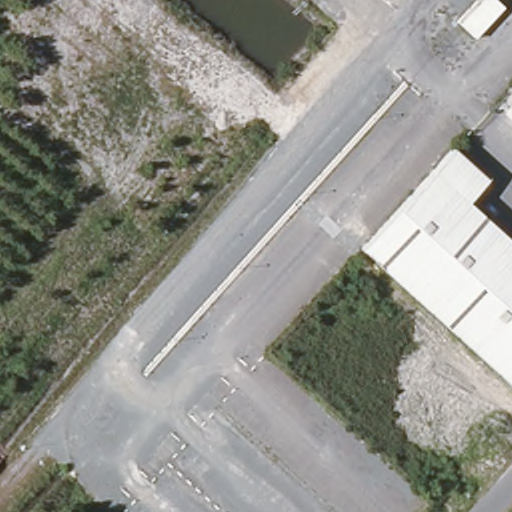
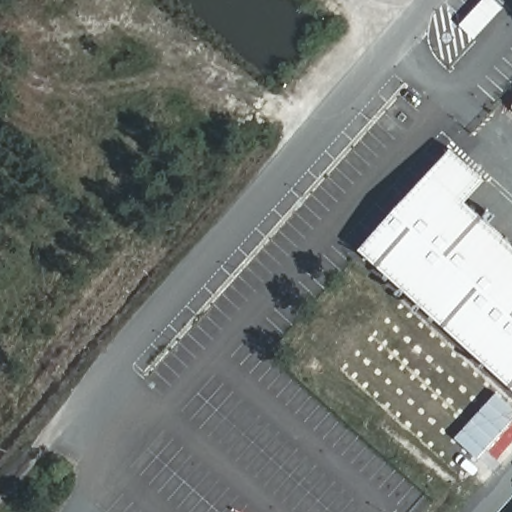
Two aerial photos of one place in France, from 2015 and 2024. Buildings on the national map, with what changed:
unchanged [(458,26),(482,0),(495,0),(503,7),(476,38),(458,26)]
unchanged [(441,151),(476,181),(457,205),(423,174),(441,151)]
unchanged [(512,254),(512,386),(419,302),(362,250),(423,174),(457,205),(512,254)]
new [(497,393),(512,407),(512,421),(478,457),(456,437),(497,393)]

